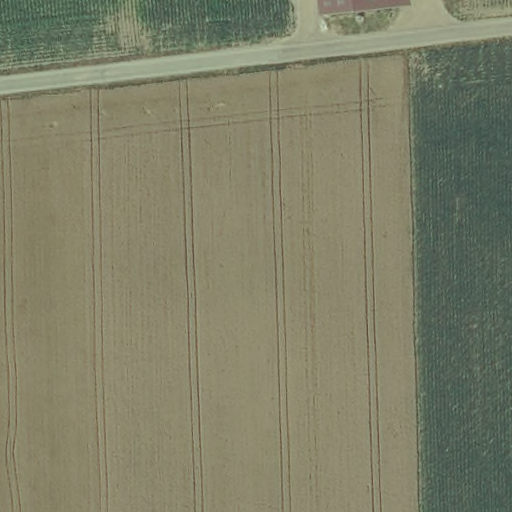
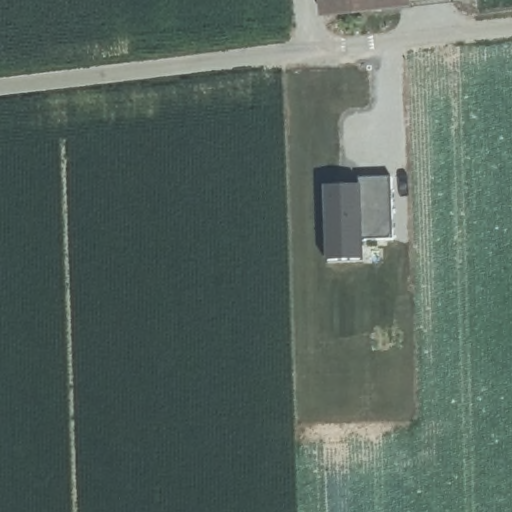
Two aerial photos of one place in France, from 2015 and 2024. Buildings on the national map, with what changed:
unchanged [(415,4),(323,14),(322,0),(414,0),(415,4)]
new [(361,186),(360,178),(392,178),(393,239),(363,240),(365,262),(328,263),(326,189),(361,186)]

